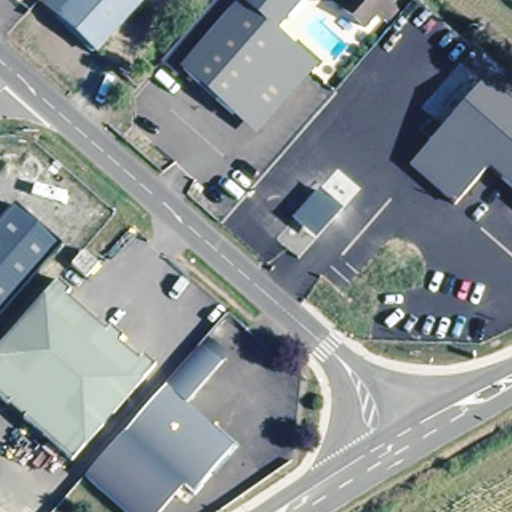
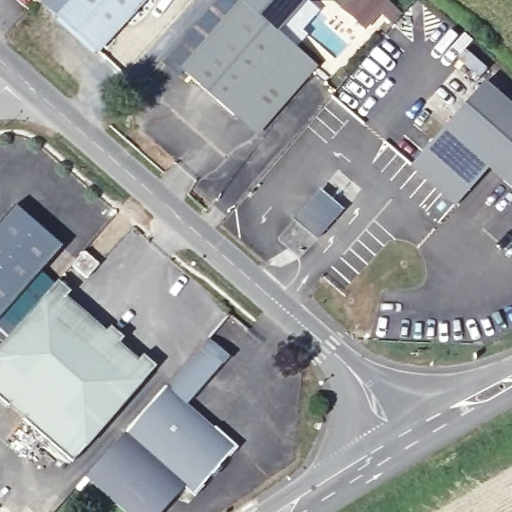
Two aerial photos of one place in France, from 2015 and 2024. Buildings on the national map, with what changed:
unchanged [(48,0),(140,0),(99,45),(48,0)]
unchanged [(263,128),(241,108),(235,115),(185,71),(180,75),(164,60),(199,20),(217,0),(237,0),(242,4),(245,0),(303,0),(277,31),(295,47),(317,66),(263,128)]
unchanged [(393,12),(381,0),(366,18),(346,0),(396,0),(401,4),(393,12)]
unchanged [(512,189),(488,169),(456,207),(411,168),(482,84),(512,110),(512,189)]
unchanged [(342,209),(315,239),(292,219),(320,189),(342,209)]
unchanged [(61,245),(0,314),(0,221),(14,205),(61,245)]
unchanged [(87,278),(72,265),(86,250),(100,263),(87,278)]
unchanged [(73,462),(0,398),(0,346),(59,279),(72,291),(67,297),(107,332),(112,326),(125,338),(120,343),(140,359),(144,354),(157,366),(73,462)]
unchanged [(195,489),(185,481),(157,512),(130,512),(85,472),(207,334),(228,353),(187,399),(237,442),(195,489)]

